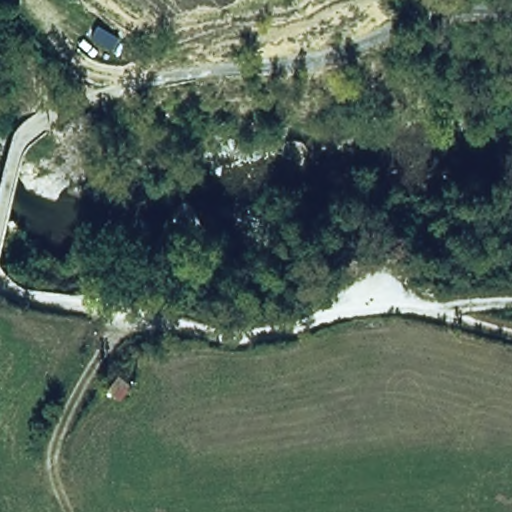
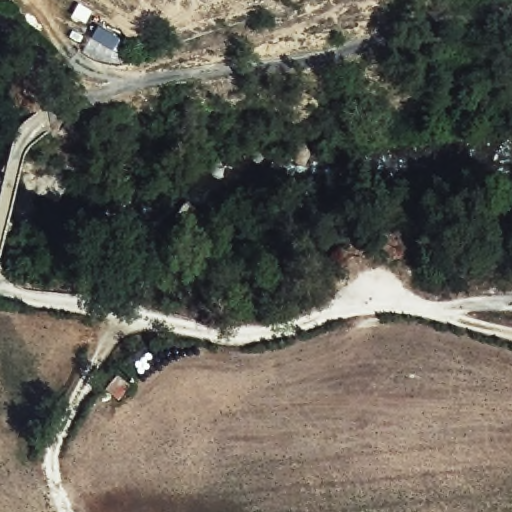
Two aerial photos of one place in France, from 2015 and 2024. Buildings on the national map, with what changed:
unchanged [(131,389),(118,403),(107,392),(119,378),(131,389)]

